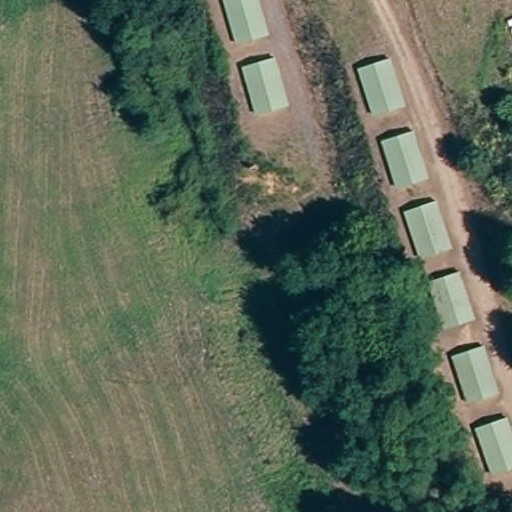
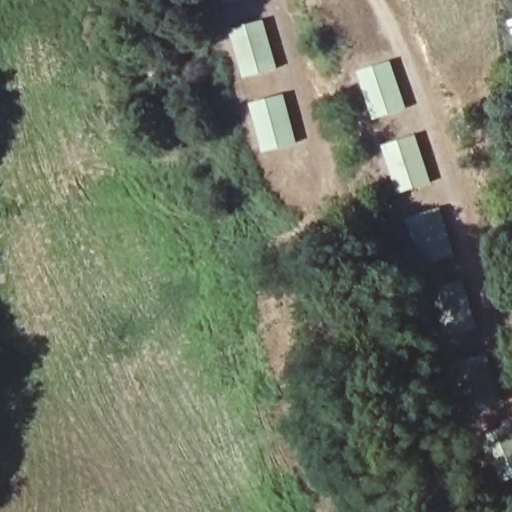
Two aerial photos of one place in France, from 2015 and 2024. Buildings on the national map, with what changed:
unchanged [(219,0),(233,0),(220,3),(219,0)]
unchanged [(226,26),(261,15),(272,64),(239,75),(226,26)]
unchanged [(357,69),(392,58),(407,106),(372,117),(357,69)]
new [(295,142),(262,152),(250,103),(282,96),(295,142)]
unchanged [(382,140),(414,130),(427,179),(396,189),(382,140)]
unchanged [(404,211),(438,200),(452,249),(420,259),(404,211)]
unchanged [(427,282),(460,273),(475,319),(442,330),(427,282)]
unchanged [(452,358),(484,346),(499,392),(467,405),(452,358)]
unchanged [(507,417),(512,431),(512,468),(491,475),(475,428),(507,417)]

